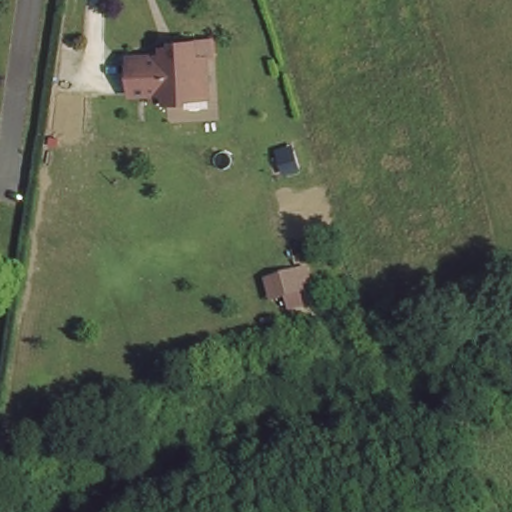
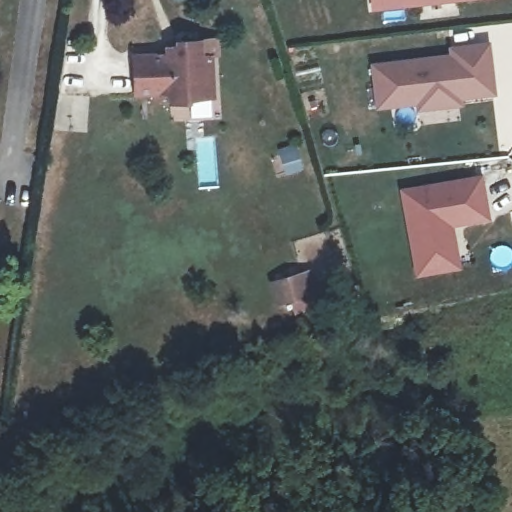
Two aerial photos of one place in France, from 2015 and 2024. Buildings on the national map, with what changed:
unchanged [(172,48),(183,47),(182,42),(205,40),(207,56),(216,55),(221,95),(196,98),(196,101),(178,103),(177,93),(143,96),(139,59),(173,55),(172,48)]
new [(375,109),(369,63),(449,53),(448,45),(490,41),(496,95),(460,99),(461,105),(415,110),(414,104),(375,109)]
new [(459,267),(413,275),(398,187),(481,173),(489,219),(453,226),(459,267)]
new [(289,300),(275,304),(268,280),(310,266),(318,293),(306,296),(309,309),(294,313),(289,300)]

